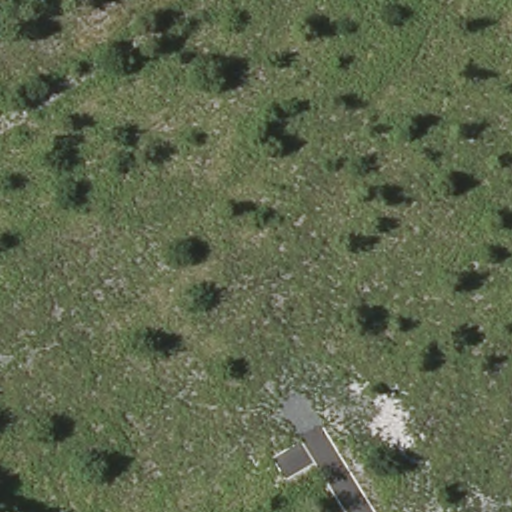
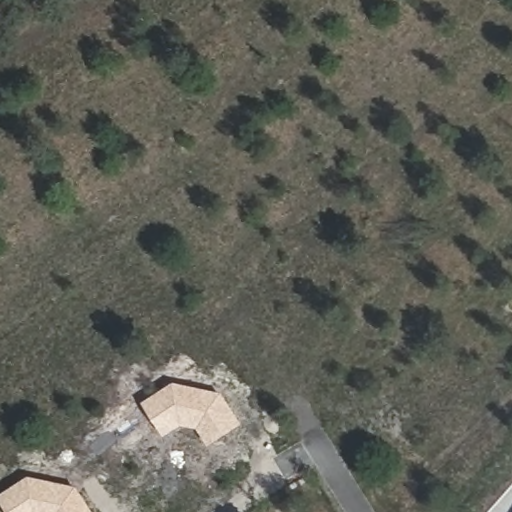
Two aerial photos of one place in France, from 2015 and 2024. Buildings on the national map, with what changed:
new [(222,392),(243,423),(208,444),(198,429),(182,424),(165,436),(144,402),(174,382),(222,392)]
new [(93,512),(8,512),(0,500),(0,495),(29,476),(77,486),(93,512)]

